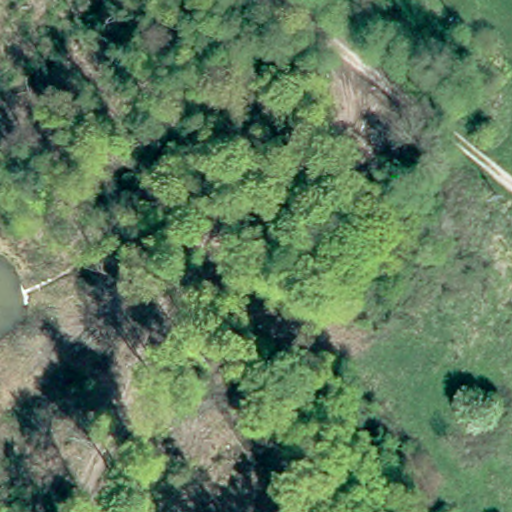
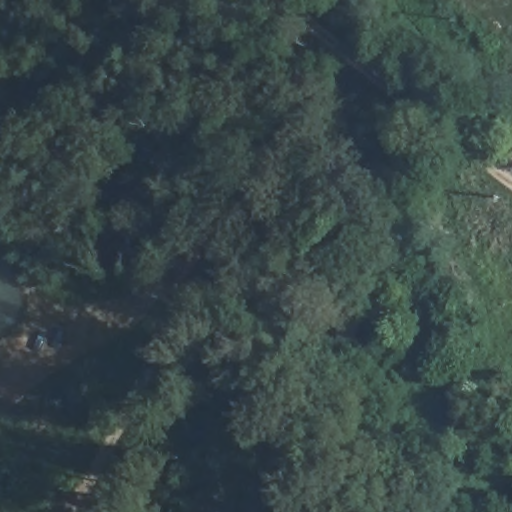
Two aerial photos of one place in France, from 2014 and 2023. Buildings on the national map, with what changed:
[]

